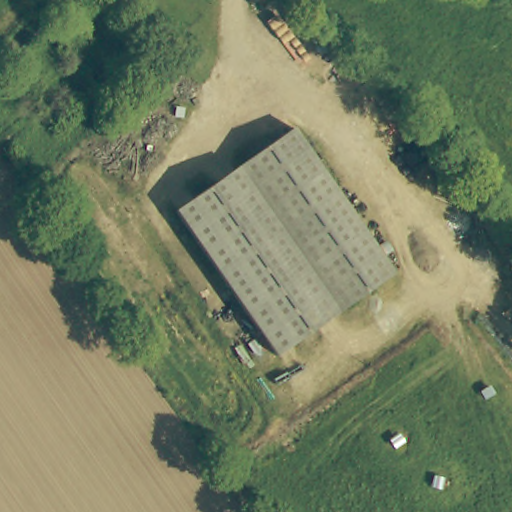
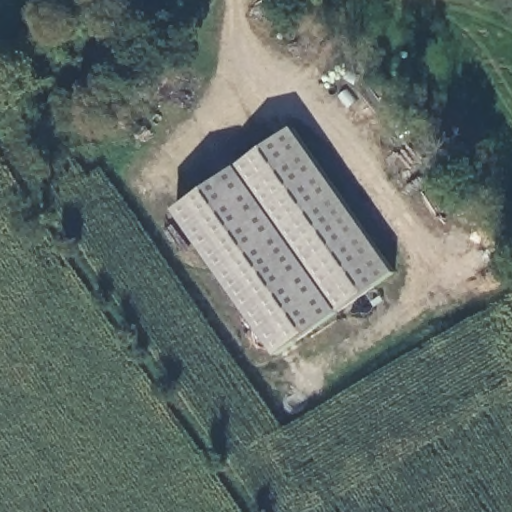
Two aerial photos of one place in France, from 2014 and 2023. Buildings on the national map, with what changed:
unchanged [(293,128),(393,273),(275,354),(176,210),(293,128)]

